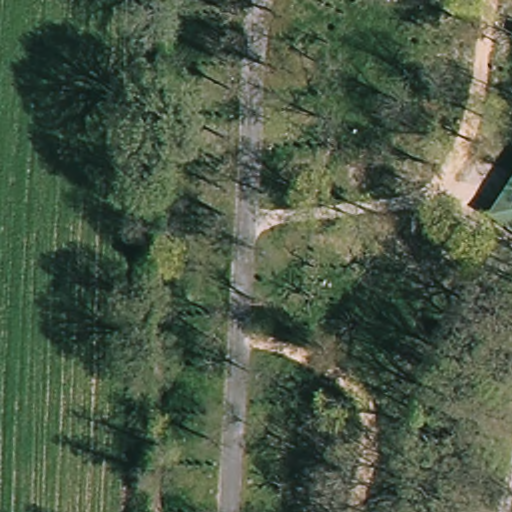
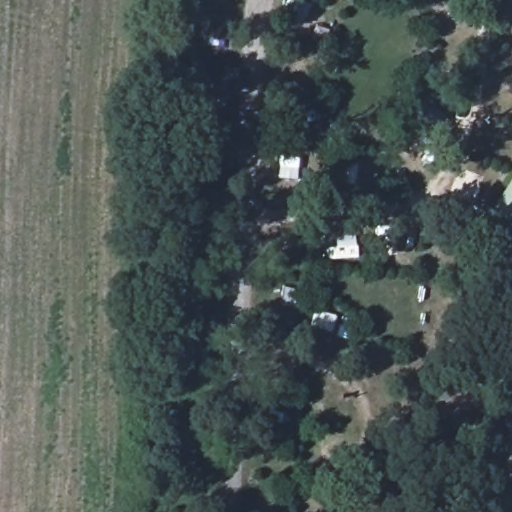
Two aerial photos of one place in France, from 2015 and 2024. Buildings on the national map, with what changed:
unchanged [(505,227),(511,214),(512,210),(512,229),(505,227)]

